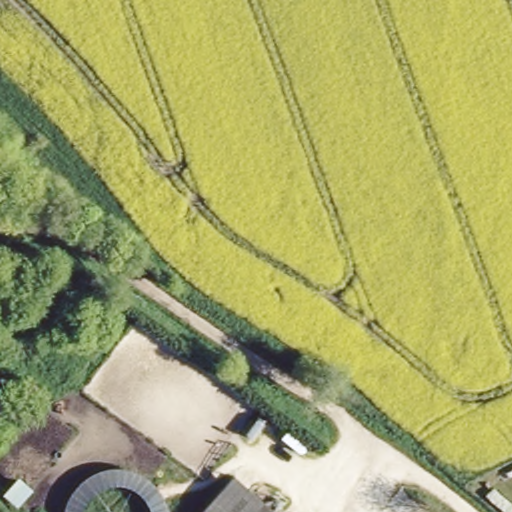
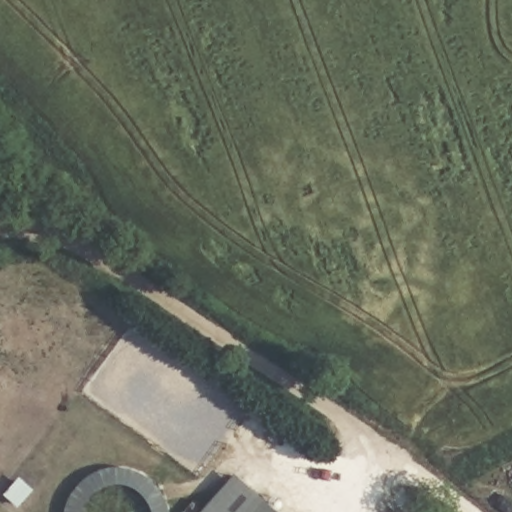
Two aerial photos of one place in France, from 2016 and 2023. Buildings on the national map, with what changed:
unchanged [(74,488),(79,482),(86,476),(94,472),(104,468),(115,467),(124,467),(132,468),(141,472),(149,478),(157,486),(162,495),(166,502),(169,510),(169,512),(151,512),(150,509),(147,502),(145,498),(140,493),(135,488),(128,485),(120,483),(112,483),(105,485),(97,488),(92,492),(87,498),(84,503),(82,509),(81,512),(63,512),(65,506),(70,494),(74,488)]
unchanged [(199,512),(235,473),(279,512),(199,512)]

